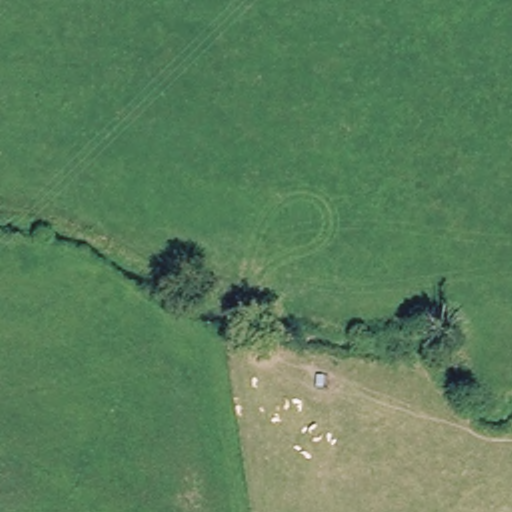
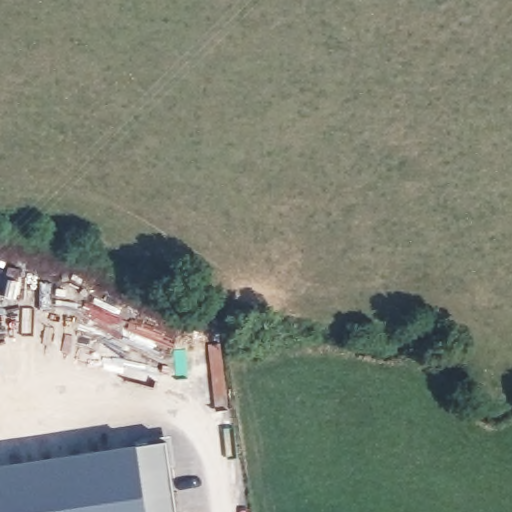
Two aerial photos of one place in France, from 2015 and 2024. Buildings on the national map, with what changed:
new [(177,512),(0,512),(0,464),(167,440),(177,512)]

